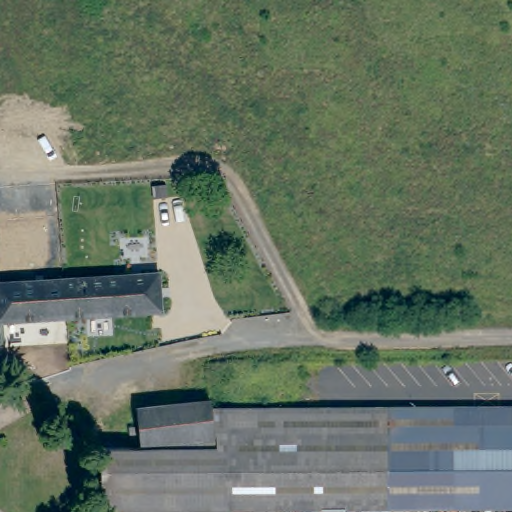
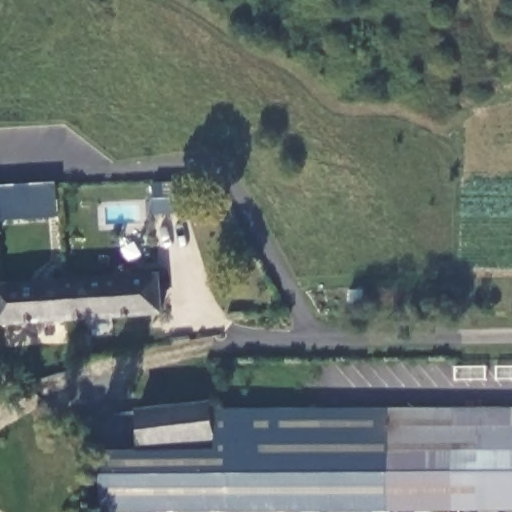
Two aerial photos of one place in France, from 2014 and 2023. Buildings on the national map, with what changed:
new [(0,221),(0,187),(57,183),(60,217),(0,221)]
unchanged [(158,314),(62,321),(0,324),(0,265),(57,262),(132,257),(154,255),(158,314)]
unchanged [(142,452),(137,412),(214,401),(217,411),(216,452),(171,452),(142,452)]
unchanged [(216,452),(217,411),(512,410),(512,512),(171,512),(171,452),(216,452)]
unchanged [(105,512),(105,452),(142,452),(171,452),(171,512),(105,512)]

